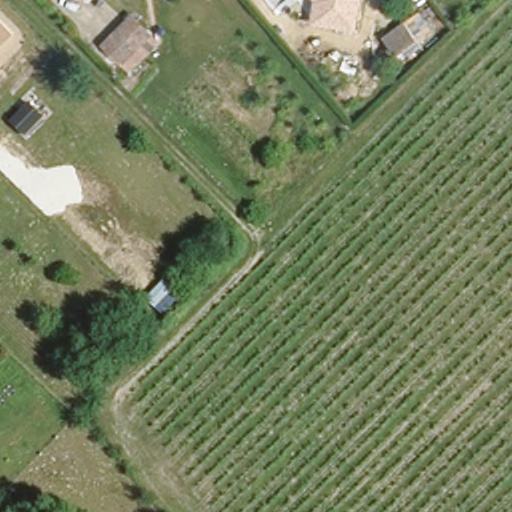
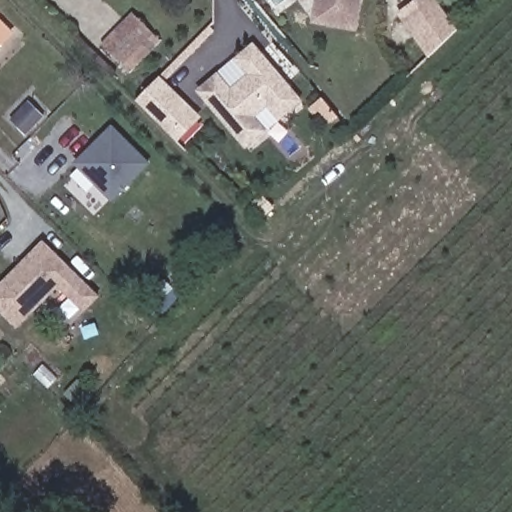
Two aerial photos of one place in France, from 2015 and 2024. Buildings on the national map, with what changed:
unchanged [(311,24),(315,0),(362,0),(357,30),(311,24)]
new [(397,15),(416,0),(436,0),(457,30),(429,58),(397,15)]
unchanged [(105,33),(125,12),(132,19),(140,10),(152,23),(124,51),(105,33)]
unchanged [(6,26),(0,33),(0,21),(6,26)]
new [(279,121),(267,107),(255,118),(267,132),(245,150),(197,91),(218,73),(231,88),(247,75),(234,59),(253,43),(302,101),(279,121)]
new [(177,144),(136,101),(160,76),(202,117),(177,144)]
unchanged [(25,136),(11,123),(28,105),(43,119),(25,136)]
new [(110,202),(74,166),(110,129),(147,165),(110,202)]
new [(44,243),(98,298),(84,312),(58,285),(16,327),(0,310),(0,287),(44,243)]

